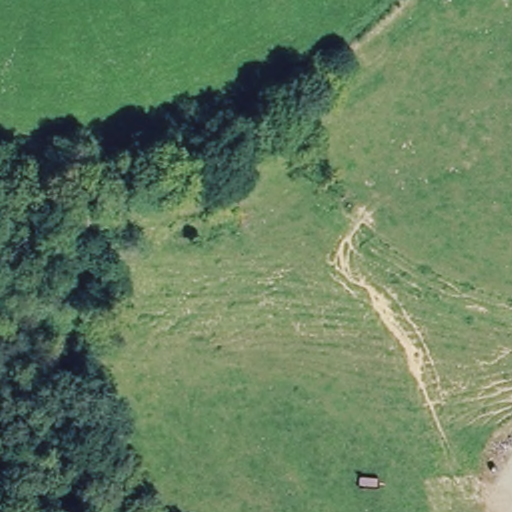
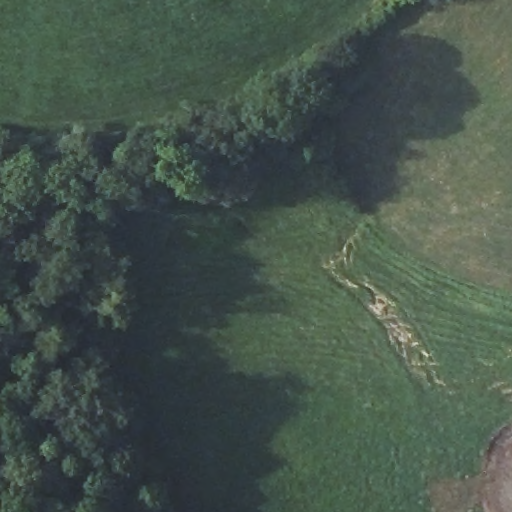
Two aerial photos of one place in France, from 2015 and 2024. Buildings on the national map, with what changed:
[]

